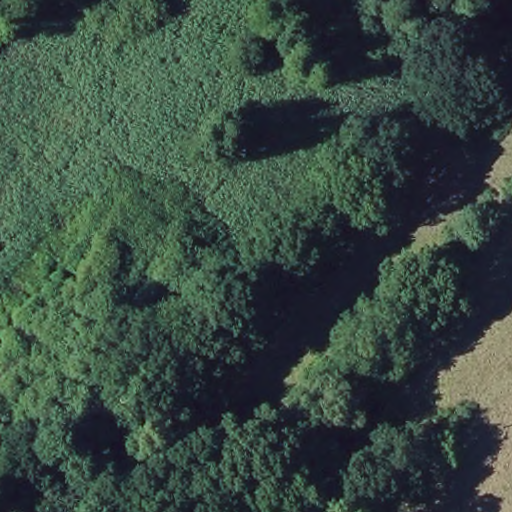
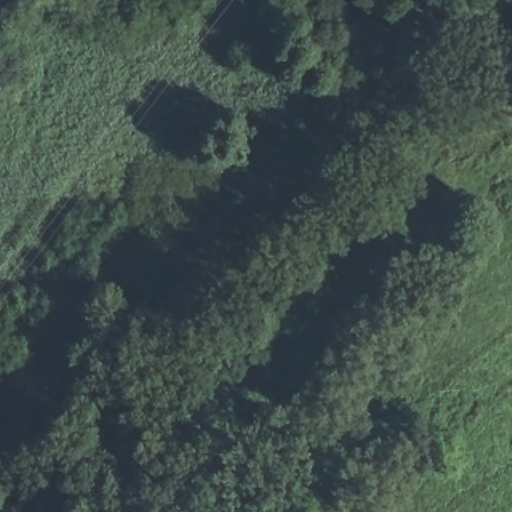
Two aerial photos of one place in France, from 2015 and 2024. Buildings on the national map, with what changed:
unchanged [(510,122),(478,148),(460,119),(492,96),(510,122)]

